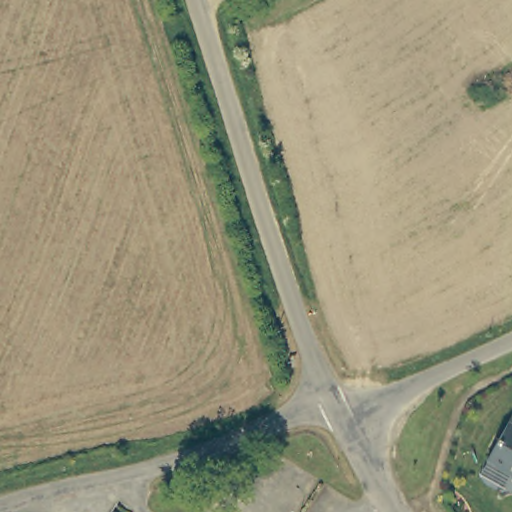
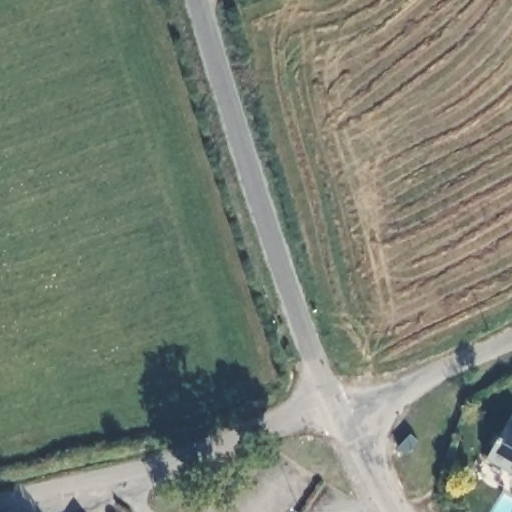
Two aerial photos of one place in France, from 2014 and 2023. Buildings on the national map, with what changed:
unchanged [(500,474),(503,469),(478,454),(500,418),(512,426),(512,482),(500,474)]

